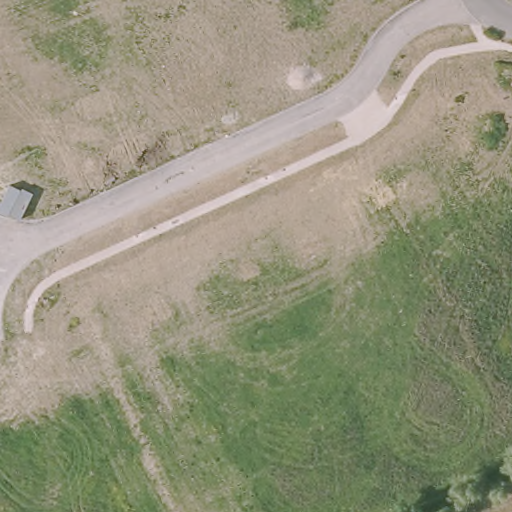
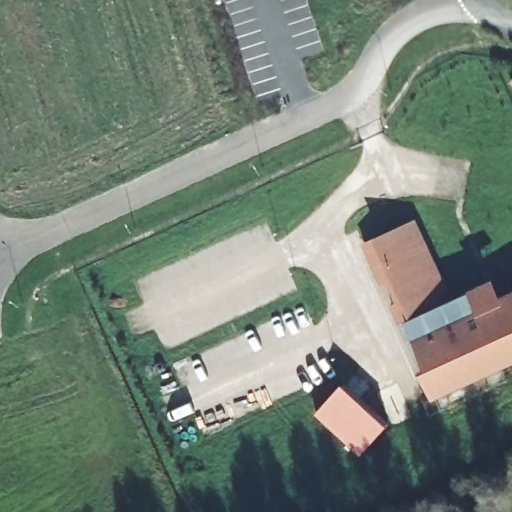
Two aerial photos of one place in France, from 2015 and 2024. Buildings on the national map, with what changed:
new [(437,400),(366,242),(415,224),(462,313),(512,293),(512,366),(437,400)]
new [(340,385),(384,425),(357,455),(312,414),(340,385)]

